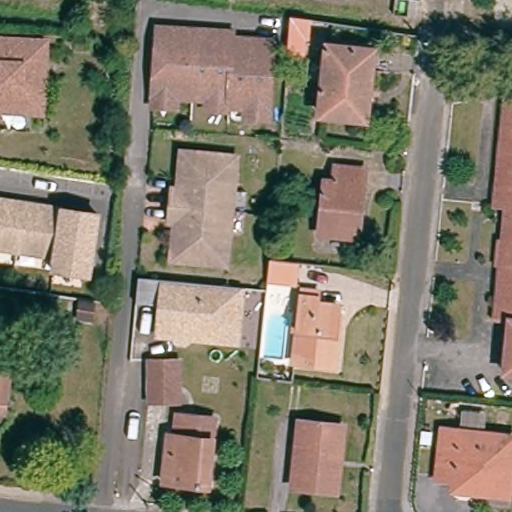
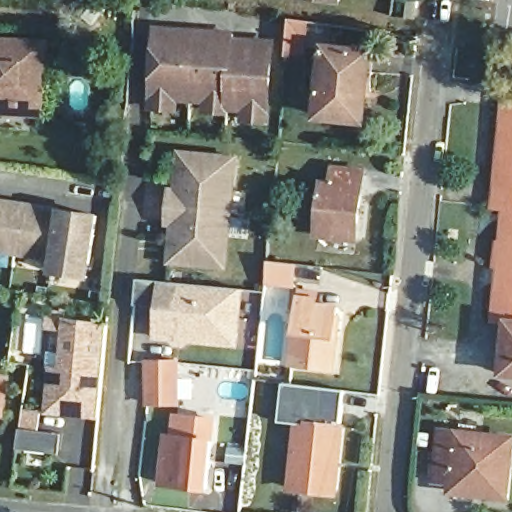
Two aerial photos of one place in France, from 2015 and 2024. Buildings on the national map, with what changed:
unchanged [(407,1),(418,2),(417,9),(415,20),(405,18),(407,1)]
unchanged [(236,29),(235,33),(277,37),(269,122),(239,119),(239,109),(221,106),(220,113),(201,112),(202,100),(177,97),(176,108),(147,106),(155,21),(236,29)]
unchanged [(0,112),(0,36),(45,37),(42,106),(42,114),(0,112)]
unchanged [(290,41),(322,44),(319,69),(287,66),(290,41)]
unchanged [(373,67),(366,137),(318,131),(326,62),(373,67)]
unchanged [(511,212),(501,212),(511,107),(512,108),(512,327),(501,325),(511,212)]
unchanged [(167,191),(168,184),(171,153),(175,154),(227,159),(217,268),(161,262),(165,225),(159,225),(159,215),(162,190),(167,191)]
unchanged [(357,244),(320,241),(325,187),(334,188),(336,172),(364,176),(357,244)]
unchanged [(97,212),(87,274),(52,268),(54,254),(0,246),(0,198),(97,212)]
unchanged [(268,261),(297,264),(294,284),(267,281),(268,261)]
unchanged [(193,341),(188,345),(182,344),(177,339),(178,337),(162,336),(165,307),(141,305),(141,302),(143,278),(150,279),(167,281),(237,288),(244,288),(245,288),(242,319),(240,343),(224,342),(214,341),(193,338),(193,341)]
unchanged [(341,317),(334,380),(294,374),(302,307),(303,299),(320,301),(318,308),(318,315),(341,317)]
new [(47,413),(51,365),(61,365),(64,330),(49,328),(52,310),(64,311),(64,317),(66,317),(110,323),(100,420),(47,413)]
unchanged [(512,348),(512,381),(509,381),(512,348)]
unchanged [(170,408),(140,408),(139,367),(170,367),(170,408)]
new [(346,390),(342,427),(298,423),(280,421),(285,383),(346,390)]
unchanged [(9,386),(3,420),(0,419),(0,385),(9,386)]
new [(64,433),(61,452),(19,448),(21,428),(24,409),(44,411),(42,431),(64,433)]
unchanged [(175,441),(177,422),(214,426),(207,493),(164,488),(168,441),(175,441)]
unchanged [(337,493),(293,490),(298,423),(342,427),(337,493)]
unchanged [(438,480),(442,433),(512,441),(512,447),(507,497),(488,496),(452,492),(453,481),(438,480)]

